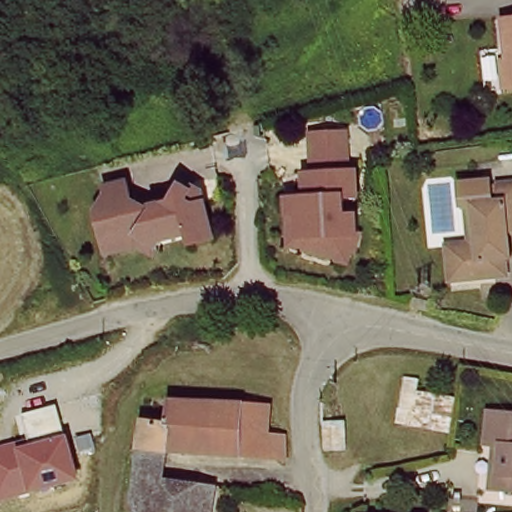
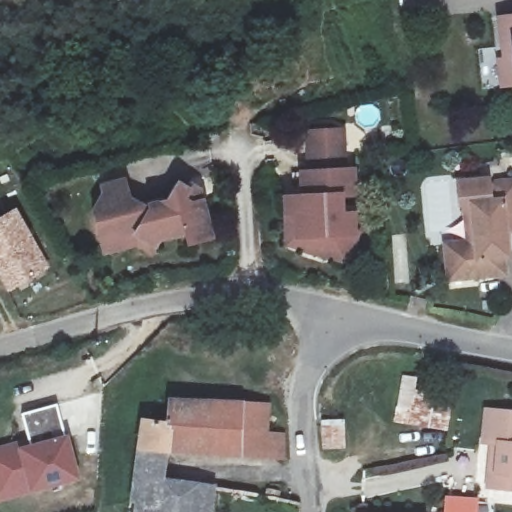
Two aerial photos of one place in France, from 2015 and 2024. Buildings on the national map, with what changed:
unchanged [(512,12),(512,82),(505,83),(497,14),(512,12)]
unchanged [(354,254),(346,257),(329,257),(313,257),(296,257),(286,257),(286,199),(304,198),(303,174),(311,174),(311,134),(344,134),(345,174),(351,174),(351,199),(337,199),(338,217),(350,217),(350,237),(354,237),(354,254)]
unchanged [(495,183),(512,181),(512,230),(490,232),(491,257),(477,258),(478,274),(432,280),(428,245),(467,241),(463,202),(471,201),(496,199),(495,183)]
unchanged [(190,250),(189,240),(163,242),(155,256),(146,257),(105,260),(99,195),(126,192),(127,201),(125,203),(142,213),(153,212),(153,217),(163,216),(178,190),(190,197),(195,188),(208,195),(213,249),(190,250)]
new [(50,268),(9,295),(0,280),(0,217),(15,209),(50,268)]
unchanged [(429,310),(419,308),(422,297),(431,298),(429,310)]
unchanged [(404,374),(419,377),(418,392),(455,397),(449,433),(395,425),(404,374)]
unchanged [(168,399),(268,403),(266,431),(285,432),(282,455),(165,446),(166,422),(168,399)]
unchanged [(24,415),(57,405),(80,478),(0,501),(0,446),(30,437),(24,415)]
demolished [(323,408),(346,408),(346,431),(324,432),(323,408)]
unchanged [(482,489),(480,475),(478,445),(470,446),(469,415),(512,411),(512,487),(482,489)]
unchanged [(137,417),(166,422),(165,446),(161,477),(213,485),(209,512),(126,512),(137,417)]
new [(324,425),(347,425),(346,448),(325,448),(324,425)]
demolished [(231,505),(218,503),(220,486),(235,488),(231,505)]

